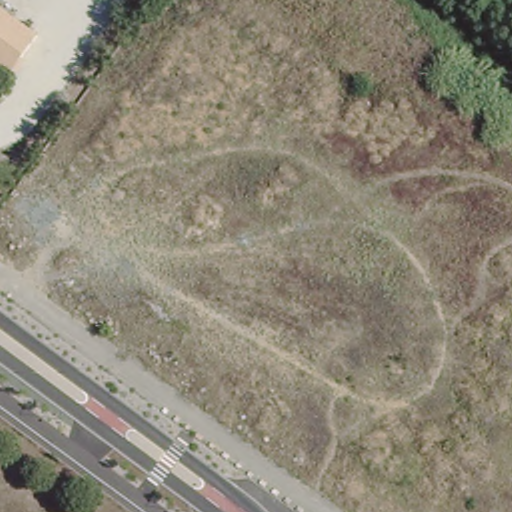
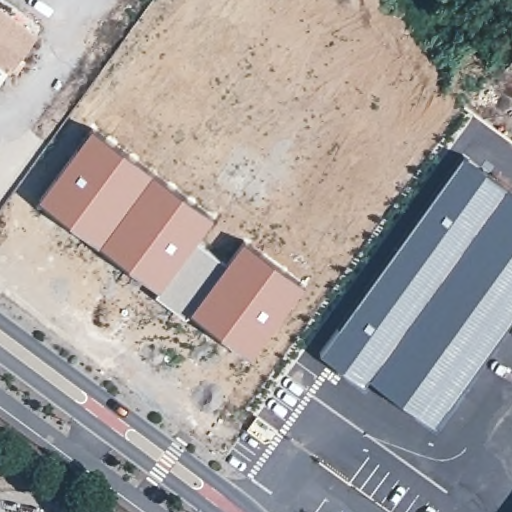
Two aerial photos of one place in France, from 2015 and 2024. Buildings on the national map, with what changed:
unchanged [(10,72),(0,65),(0,10),(37,37),(10,72)]
new [(92,127),(175,185),(213,215),(199,241),(225,261),(190,312),(186,317),(155,295),(158,290),(80,233),(39,199),(92,127)]
new [(434,425),(370,377),(364,385),(320,352),(464,156),(512,190),(512,316),(434,425)]
new [(225,261),(245,239),(305,282),(294,300),(250,356),(190,312),(225,261)]

